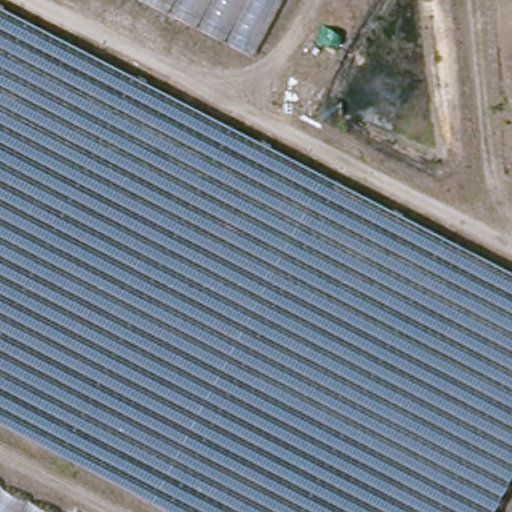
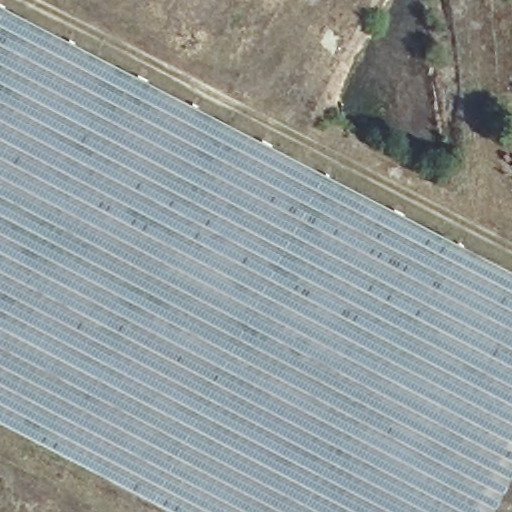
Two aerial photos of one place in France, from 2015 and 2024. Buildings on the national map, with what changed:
demolished [(143,0),(267,0),(239,50),(143,0)]
unchanged [(512,472),(491,512),(179,512),(0,419),(0,7),(512,274),(512,472)]
demolished [(0,512),(0,486),(49,512),(0,512)]

